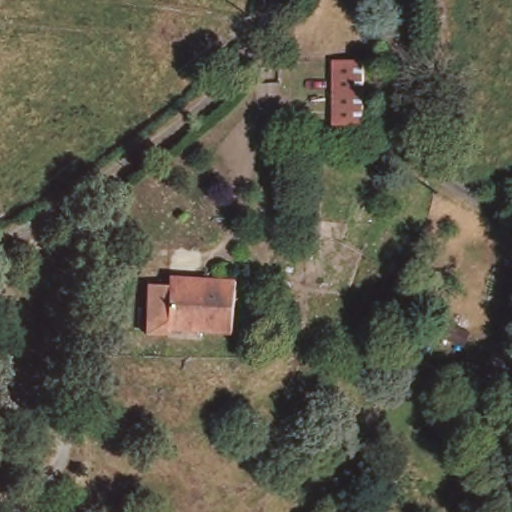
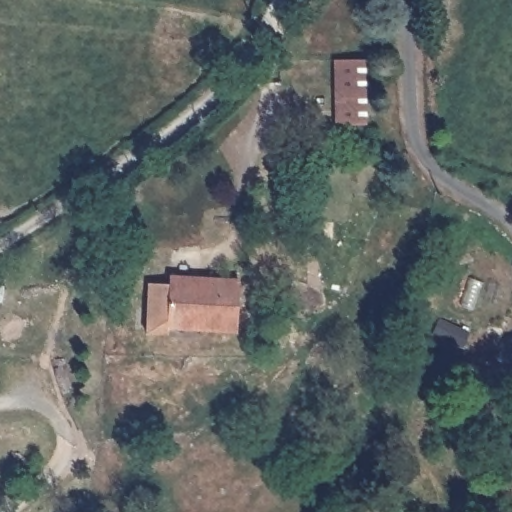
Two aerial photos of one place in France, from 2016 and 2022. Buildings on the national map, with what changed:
unchanged [(370,63),(370,129),(342,128),(340,63),(370,63)]
unchanged [(173,325),(152,323),(156,274),(177,276),(178,270),(248,277),(244,332),(205,327),(173,323),(173,325)]

